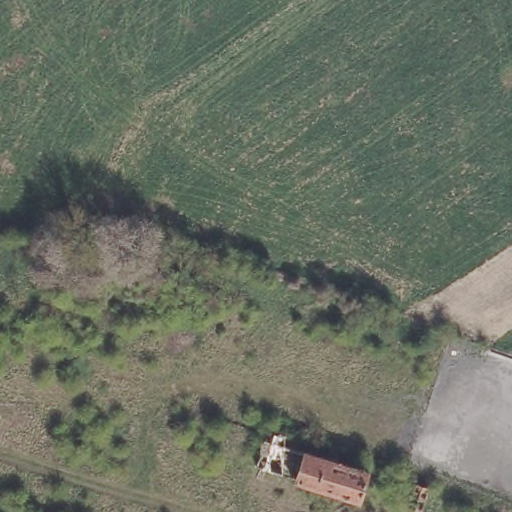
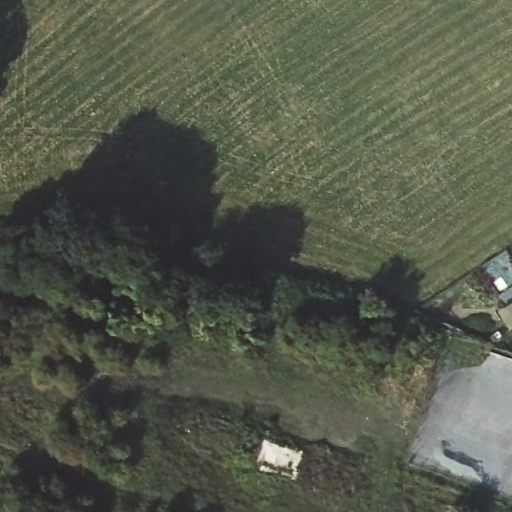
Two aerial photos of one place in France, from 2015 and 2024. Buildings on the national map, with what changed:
unchanged [(286,474),(247,460),(255,434),(295,447),(296,445),(358,466),(348,496),(285,475),(286,474)]
unchanged [(412,512),(393,509),(401,474),(435,484),(430,512),(412,512)]

